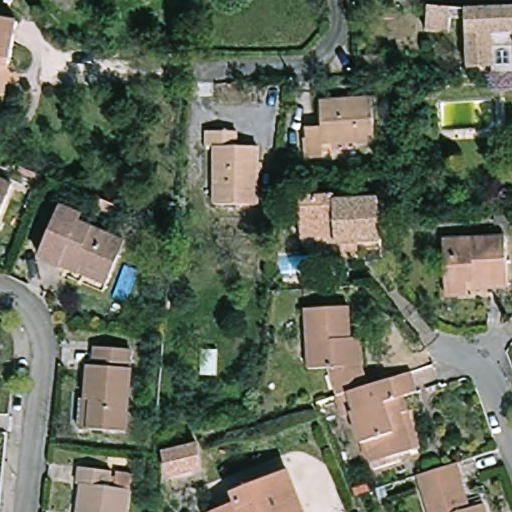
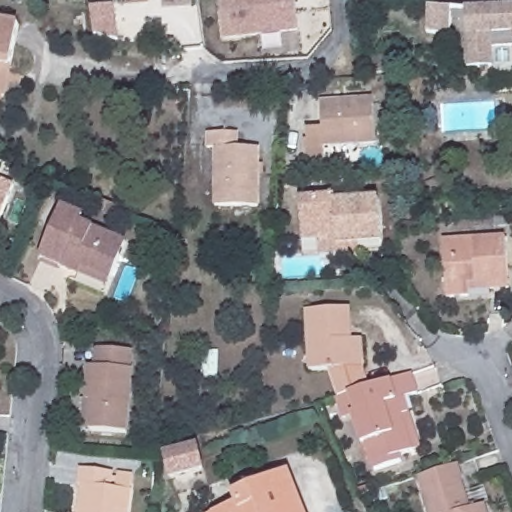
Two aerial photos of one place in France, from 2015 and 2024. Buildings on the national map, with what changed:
new [(298,32),(223,40),(220,0),(295,0),(298,32)]
unchanged [(447,34),(427,32),(428,8),(448,9),(447,34)]
unchanged [(512,13),(512,53),(497,54),(498,71),(473,73),(468,15),(477,15),(477,8),(482,8),(482,15),(512,13)]
unchanged [(0,21),(18,24),(11,67),(5,99),(0,97),(0,21)]
unchanged [(360,56),(392,54),(393,74),(375,75),(362,76),(360,56)]
unchanged [(375,101),(378,143),(326,147),(327,157),(308,158),(307,141),(310,141),(308,129),(324,128),(322,104),(375,101)]
unchanged [(210,149),(209,135),(240,135),(240,150),(260,150),(262,205),(220,206),(218,149),(210,149)]
unchanged [(0,218),(0,182),(15,189),(0,218)]
unchanged [(337,261),(337,252),(321,253),(320,236),(305,237),(302,198),(335,196),(340,195),(340,201),(380,198),(383,240),(358,242),(360,259),(337,261)]
unchanged [(72,264),(41,250),(60,208),(77,216),(73,224),(122,245),(109,274),(107,279),(72,264)]
unchanged [(469,297),(449,299),(445,242),(505,238),(509,290),(489,292),(468,293),(469,297)]
unchanged [(360,367),(369,388),(348,394),(335,399),(327,371),(310,373),(308,310),(347,308),(348,341),(359,340),(360,367)]
unchanged [(90,401),(93,367),(99,367),(100,348),(135,351),(134,368),(136,368),(130,434),(93,431),(88,430),(90,401)]
unchanged [(413,453),(398,457),(400,464),(373,472),(365,444),(358,446),(350,416),(340,418),(333,399),(335,399),(348,394),(369,388),(391,381),(413,373),(420,393),(406,398),(411,415),(422,450),(413,453)]
unchanged [(203,471),(171,478),(165,455),(198,447),(203,471)]
unchanged [(460,465),(465,482),(462,483),(472,511),(485,507),(486,512),(432,512),(421,478),(460,465)]
unchanged [(80,484),(82,467),(113,470),(112,487),(132,489),(130,512),(81,512),(85,484),(80,484)]
unchanged [(233,494),(288,474),(302,512),(218,512),(237,505),(233,494)]

